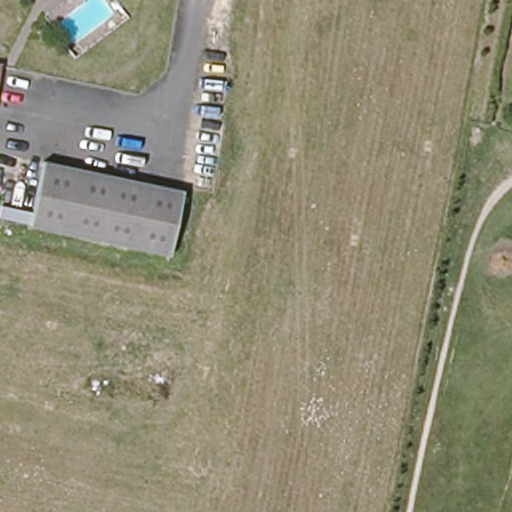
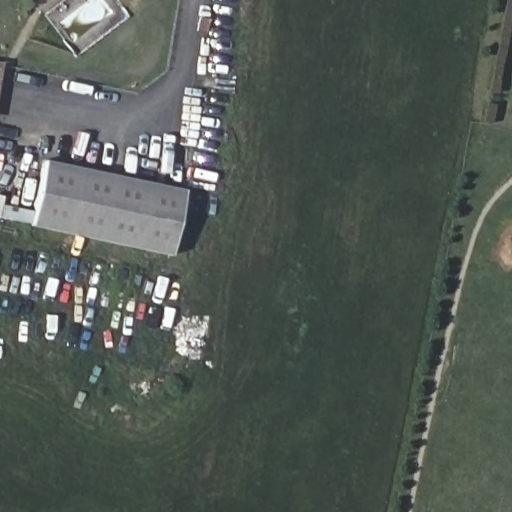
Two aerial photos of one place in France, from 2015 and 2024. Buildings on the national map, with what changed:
unchanged [(171,257),(33,227),(46,166),(184,197),(171,257)]

